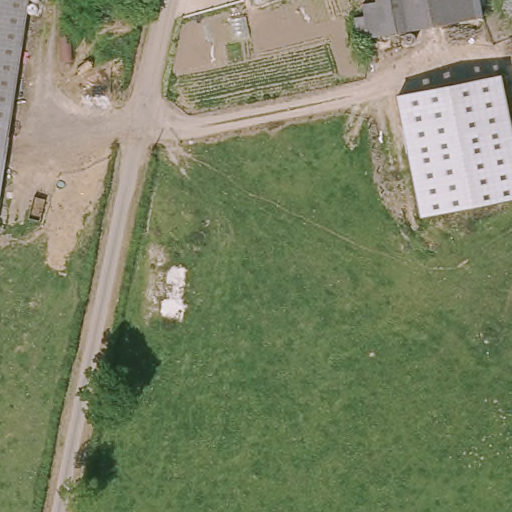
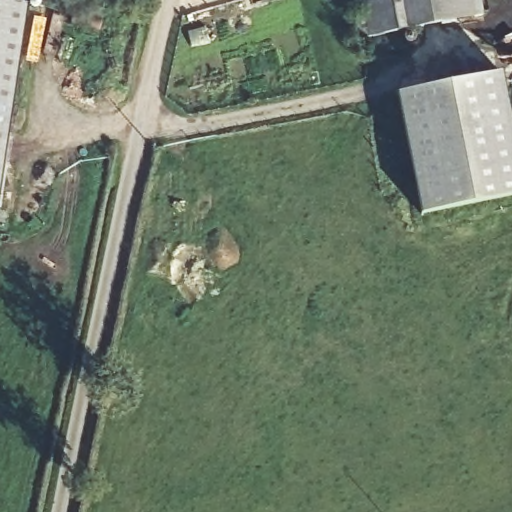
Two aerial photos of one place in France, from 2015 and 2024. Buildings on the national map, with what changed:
unchanged [(0,195),(0,0),(28,0),(0,195)]
unchanged [(479,23),(366,39),(360,4),(377,1),(377,0),(476,0),(479,23)]
unchanged [(398,95),(503,73),(512,120),(512,199),(421,216),(398,95)]

